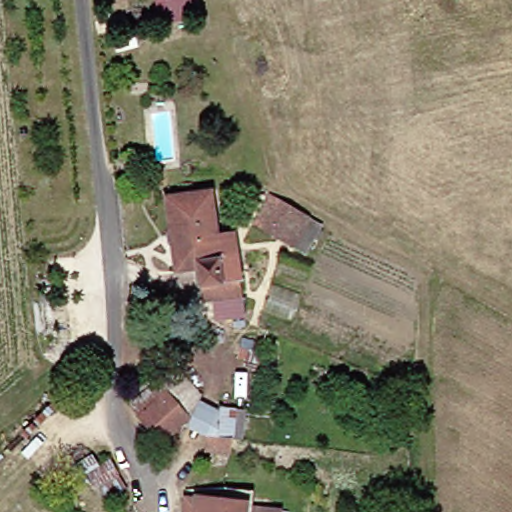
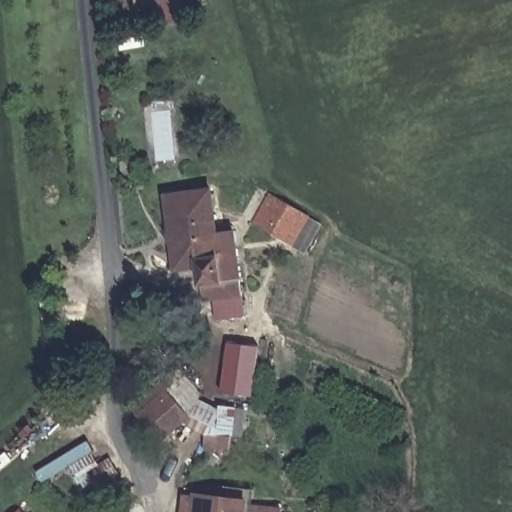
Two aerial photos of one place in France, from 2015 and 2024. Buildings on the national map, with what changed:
unchanged [(209,193),(217,230),(229,229),(237,279),(230,297),(195,299),(192,259),(180,259),(180,229),(170,230),(167,199),(209,193)]
unchanged [(332,227),(320,255),(262,229),(274,195),(332,227)]
new [(253,397),(222,394),(229,343),(259,347),(253,397)]
unchanged [(139,406),(181,366),(192,376),(177,391),(184,399),(157,427),(139,406)]
unchanged [(184,399),(185,398),(177,391),(192,376),(204,388),(200,397),(187,428),(170,441),(157,427),(184,399)]
unchanged [(215,421),(217,404),(246,407),(242,429),(232,429),(231,443),(199,438),(202,419),(215,421)]
unchanged [(102,451),(105,457),(104,462),(99,467),(76,465),(78,448),(102,451)]
unchanged [(223,494),(224,486),(254,489),(254,501),(285,504),(285,508),(294,508),(293,512),(200,512),(202,493),(223,494)]

